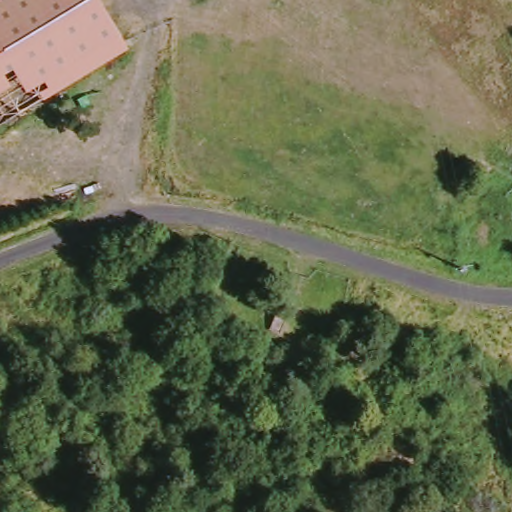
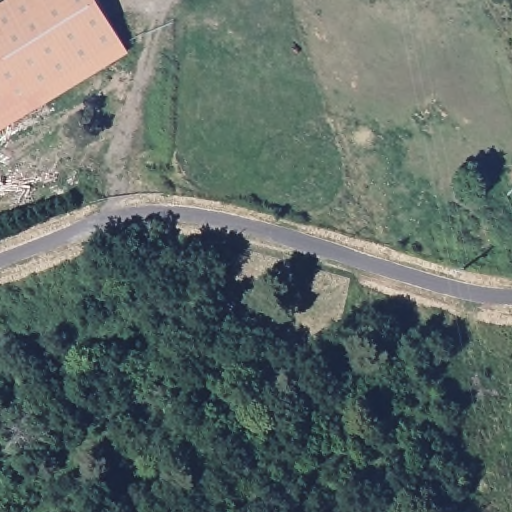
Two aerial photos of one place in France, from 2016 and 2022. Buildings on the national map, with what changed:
unchanged [(0,123),(0,2),(3,0),(100,0),(127,44),(0,123)]

